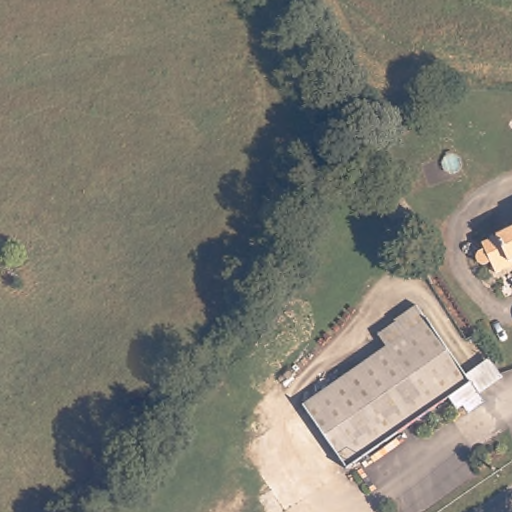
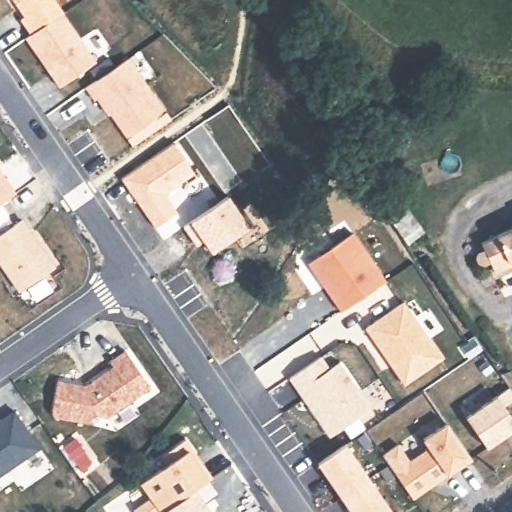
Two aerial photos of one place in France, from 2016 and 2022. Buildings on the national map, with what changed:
new [(64,11),(63,12),(32,33),(21,18),(25,16),(14,0),(56,0),(64,11)]
new [(32,33),(63,12),(97,61),(60,86),(26,37),(32,33)]
new [(166,110),(127,137),(107,108),(105,109),(97,97),(95,99),(86,87),(91,84),(129,57),(166,110)]
new [(165,193),(179,212),(155,228),(121,178),(175,141),(196,172),(165,193)]
new [(17,193),(0,204),(0,169),(17,193)]
new [(193,239),(184,226),(228,195),(249,226),(212,251),(204,240),(197,245),(193,239)]
new [(22,219),(55,267),(20,291),(0,262),(0,235),(22,219)]
unchanged [(491,265),(483,263),(482,259),(485,253),(481,245),(512,230),(512,267),(496,275),(494,271),(491,265)]
new [(340,311),(307,262),(352,231),(388,280),(340,311)]
new [(404,385),(364,326),(403,299),(442,357),(404,385)]
demolished [(445,396),(344,466),(301,403),(384,345),(377,335),(415,304),(458,366),(468,380),(445,396)]
new [(58,381),(86,386),(114,367),(110,361),(126,351),(151,388),(108,418),(96,416),(94,424),(56,417),(52,412),(58,381)]
new [(321,354),(330,366),(340,359),(372,406),(331,434),(290,376),(321,354)]
new [(489,443),(467,413),(511,382),(512,383),(512,396),(506,400),(512,410),(512,427),(510,428),(489,443)]
new [(15,411),(41,448),(0,476),(0,421),(15,411)]
new [(400,441),(412,458),(431,444),(425,436),(449,419),(473,454),(415,495),(385,452),(400,441)]
new [(139,487),(169,465),(162,457),(188,439),(198,454),(205,464),(215,477),(165,512),(134,512),(149,501),(139,487)]
new [(345,443),(393,512),(351,512),(317,463),(345,443)]
new [(222,493),(208,503),(214,512),(165,512),(212,479),(222,493)]

